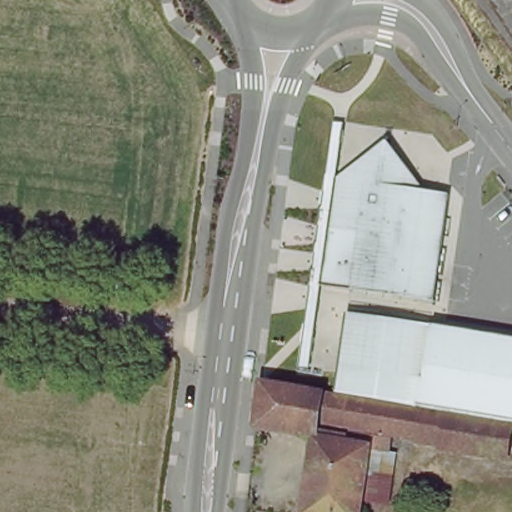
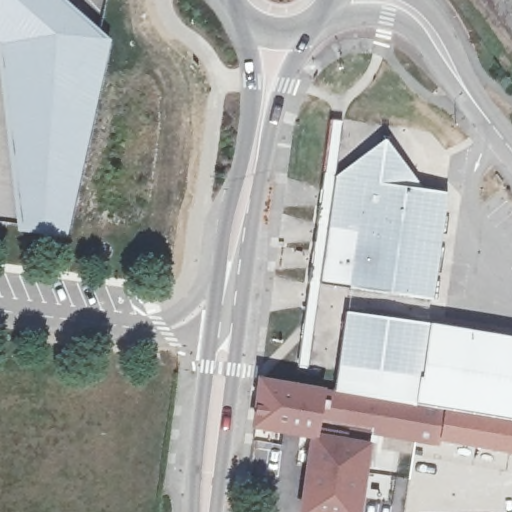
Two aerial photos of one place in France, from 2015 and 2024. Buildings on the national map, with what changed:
new [(103,47),(65,238),(8,235),(0,178),(0,41),(5,41),(0,37),(0,0),(49,0),(103,47)]
unchanged [(354,236),(324,232),(331,178),(363,152),(380,137),(395,157),(405,169),(420,190),(443,193),(425,332),(512,343),(512,421),(502,420),(437,410),(414,406),(418,379),(336,366),(354,236)]
unchanged [(249,431),(256,381),(275,384),(414,406),(437,410),(432,443),(373,436),(367,468),(355,467),(348,512),(295,512),(306,440),(249,431)]
unchanged [(497,451),(432,443),(437,410),(502,420),(497,451)]

